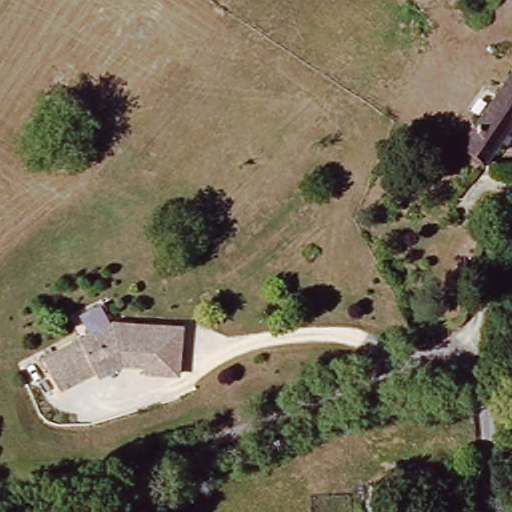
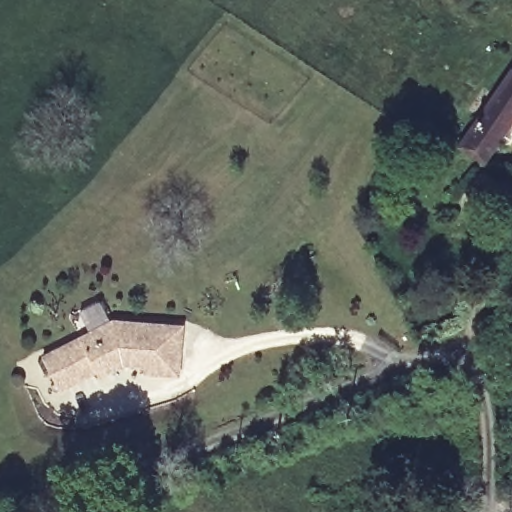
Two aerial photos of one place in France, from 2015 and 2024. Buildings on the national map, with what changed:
unchanged [(512,111),(472,171),(447,155),(508,67),(512,70),(512,111)]
unchanged [(145,373),(146,367),(126,364),(100,376),(98,372),(62,390),(45,356),(116,322),(183,327),(181,362),(180,377),(154,375),(145,373)]

